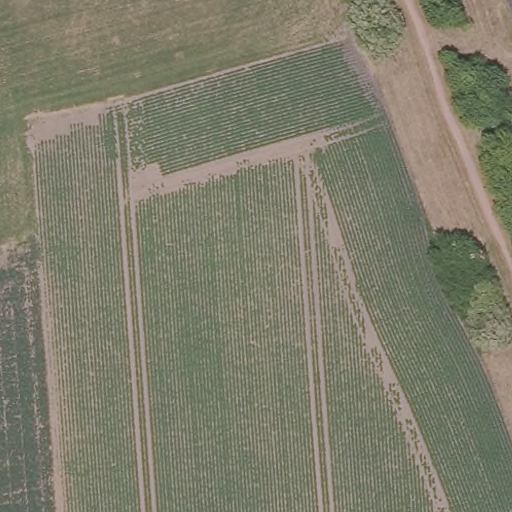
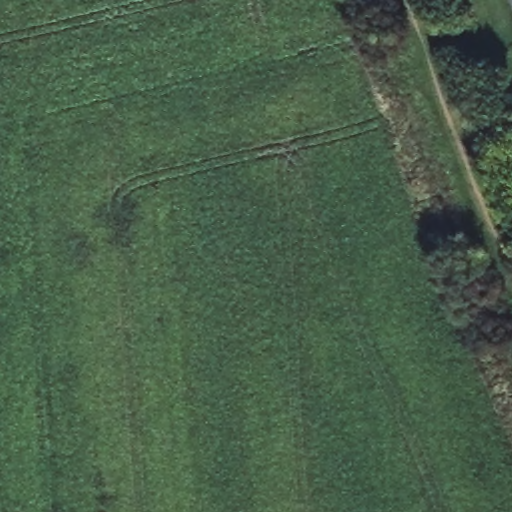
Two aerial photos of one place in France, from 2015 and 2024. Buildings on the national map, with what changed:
[]

